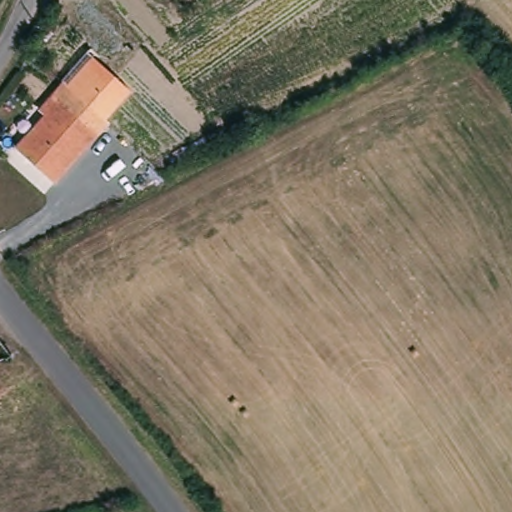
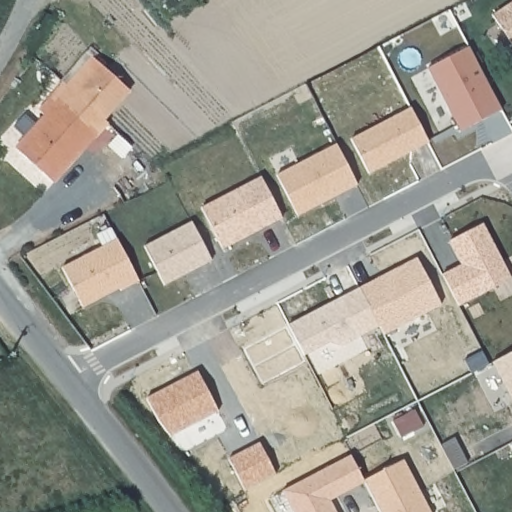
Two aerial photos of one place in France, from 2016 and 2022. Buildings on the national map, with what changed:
new [(512,0),(512,41),(493,12),(512,0)]
new [(471,45),(503,109),(460,130),(428,67),(471,45)]
unchanged [(124,90),(101,120),(105,123),(52,185),(11,152),(40,115),(35,110),(60,80),(66,84),(87,61),(124,90)]
new [(431,142),(370,174),(352,136),(411,106),(431,142)]
new [(358,184),(299,215),(278,172),(336,142),(358,184)]
new [(261,175),(285,219),(224,249),(202,205),(261,175)]
new [(213,260),(166,284),(145,245),(190,220),(213,260)]
new [(512,276),(512,279),(458,306),(441,274),(461,263),(450,240),(484,221),(512,276)]
new [(120,289),(120,286),(82,306),(62,267),(117,239),(138,280),(120,289)]
new [(418,257),(442,303),(427,311),(438,330),(394,351),(360,287),(418,257)]
new [(290,325),(360,287),(380,325),(342,345),(331,341),(305,355),(290,325)]
new [(512,399),(492,361),(512,351),(512,399)]
new [(365,478),(405,458),(432,512),(382,512),(366,481),(332,498),(339,512),(293,512),(282,490),(351,453),(365,478)]

